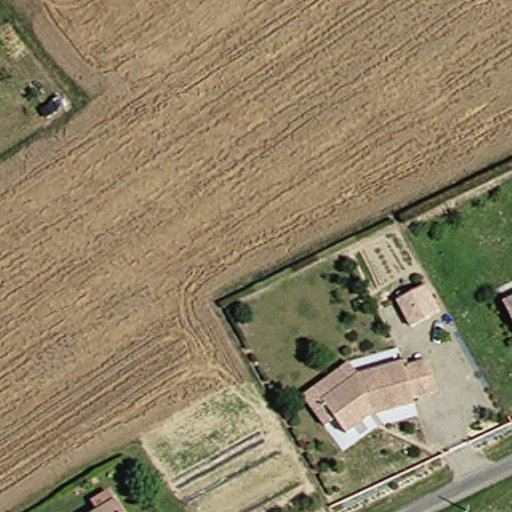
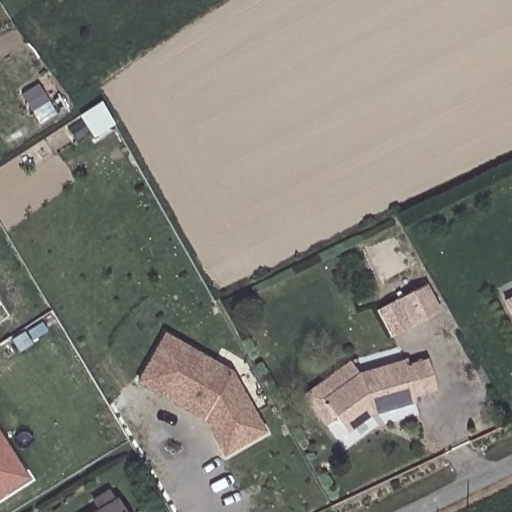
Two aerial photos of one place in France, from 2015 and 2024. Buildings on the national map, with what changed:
demolished [(413,281),(429,308),(412,318),(397,291),(413,281)]
unchanged [(511,299),(512,299),(512,301),(511,299)]
unchanged [(395,300),(411,326),(395,336),(379,310),(395,300)]
new [(215,431),(207,417),(162,389),(143,378),(171,332),(234,370),(247,396),(255,410),(266,431),(226,452),(215,431)]
unchanged [(442,393),(425,398),(427,403),(376,415),(351,433),(340,417),(328,400),(363,374),(413,361),(415,367),(434,361),(442,393)]
unchanged [(328,400),(340,417),(330,425),(308,395),(355,362),(363,374),(328,400)]
new [(0,496),(0,434),(27,479),(0,496)]
unchanged [(113,491),(125,512),(101,512),(95,501),(113,491)]

